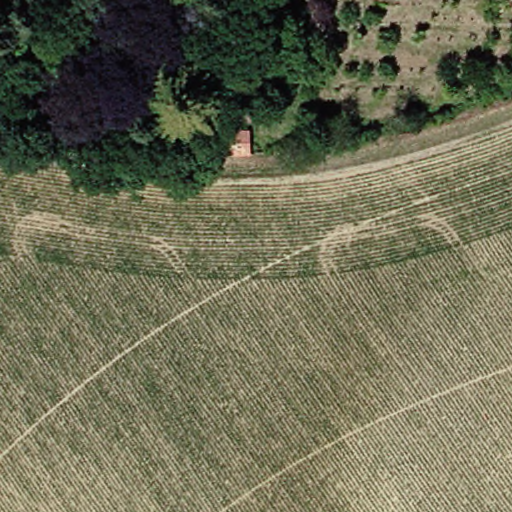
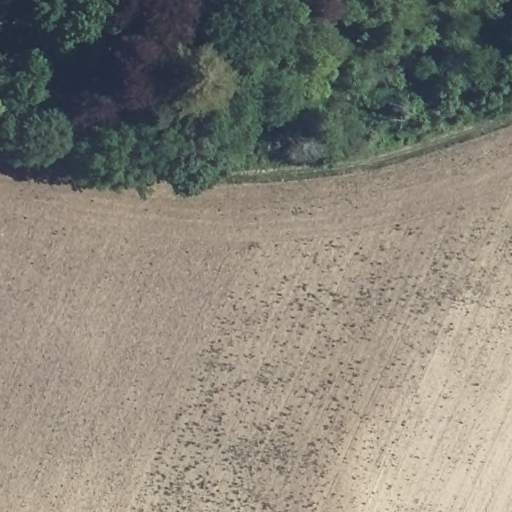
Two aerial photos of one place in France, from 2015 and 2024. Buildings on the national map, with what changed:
unchanged [(225,115),(204,115),(204,92),(224,92),(225,115)]
unchanged [(207,138),(200,138),(200,130),(207,130),(207,138)]
unchanged [(249,156),(210,156),(210,134),(249,134),(249,156)]

